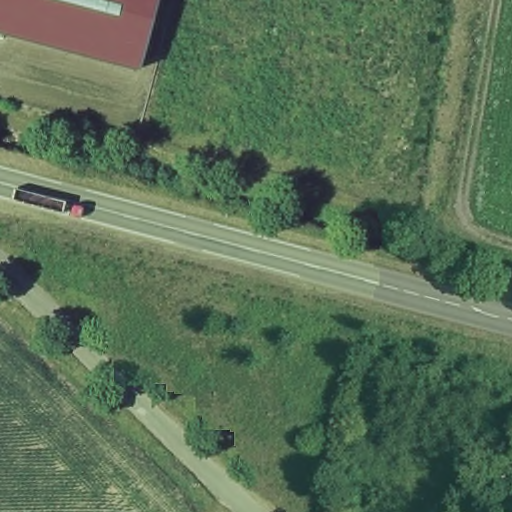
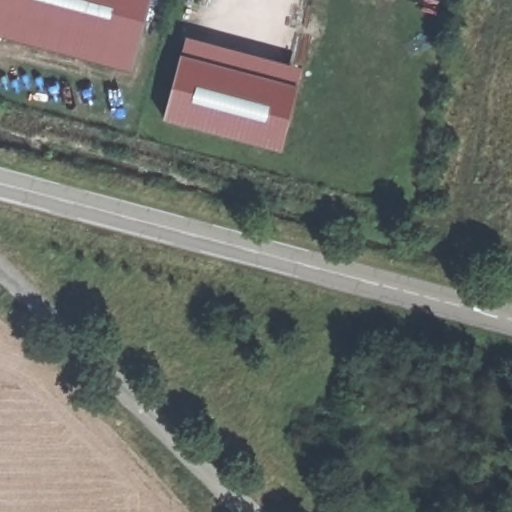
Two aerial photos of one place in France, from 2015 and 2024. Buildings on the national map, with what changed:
unchanged [(0,35),(0,0),(151,0),(132,70),(0,35)]
new [(164,119),(186,37),(303,68),(281,150),(164,119)]

